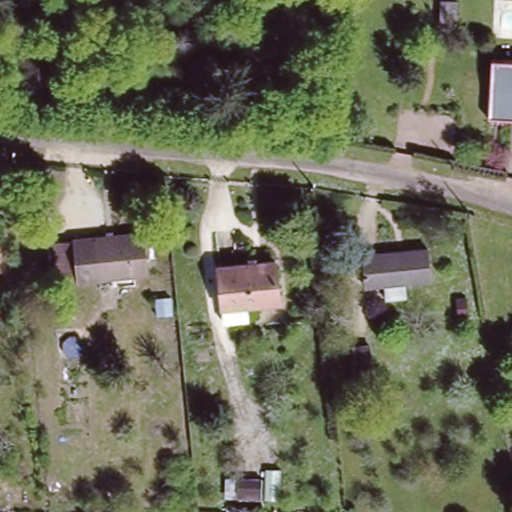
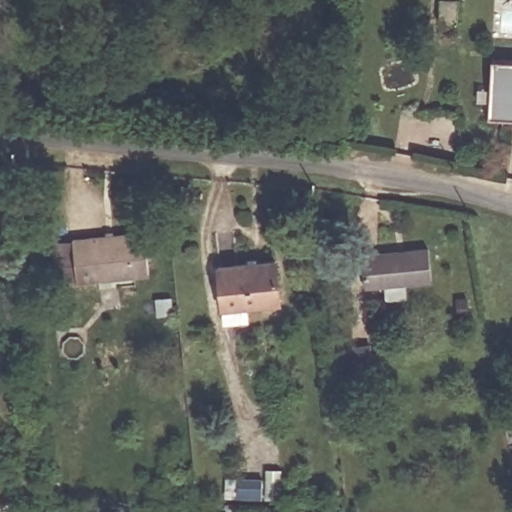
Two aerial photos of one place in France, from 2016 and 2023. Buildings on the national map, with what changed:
unchanged [(434,25),(436,6),(450,8),(448,27),(434,25)]
unchanged [(74,240),(143,236),(146,275),(76,279),(74,240)]
unchanged [(389,249),(389,246),(426,243),(428,275),(404,276),(406,294),(385,295),(384,279),(365,280),(363,250),(389,249)]
unchanged [(221,262),(277,257),(280,301),(224,305),(221,262)]
unchanged [(452,321),(451,305),(460,304),(461,320),(452,321)]
unchanged [(348,377),(348,370),(346,351),(363,350),(366,377),(348,377)]
unchanged [(216,500),(216,482),(238,482),(237,501),(216,500)]

